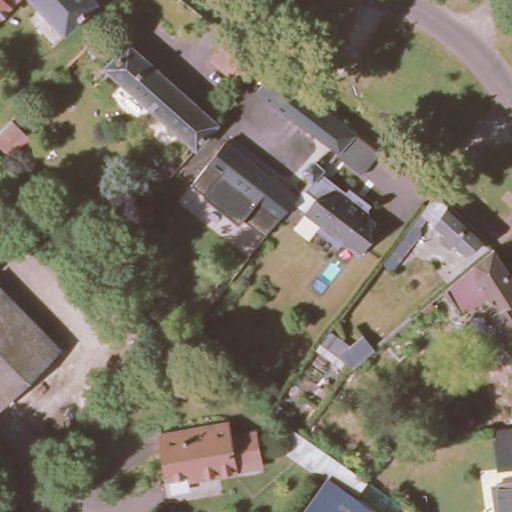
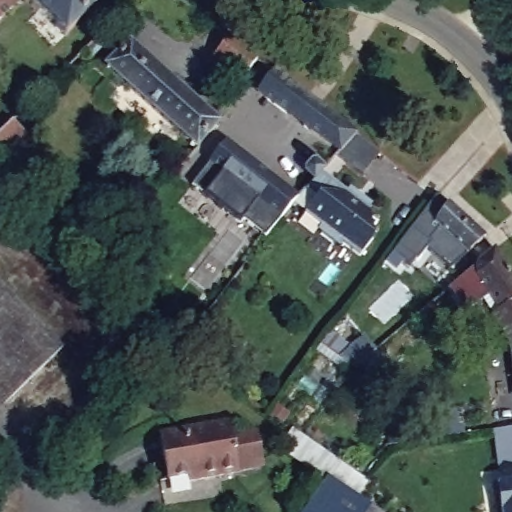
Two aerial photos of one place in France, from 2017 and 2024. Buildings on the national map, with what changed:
unchanged [(0,0),(17,0),(9,7),(0,15),(0,0)]
unchanged [(55,44),(35,24),(45,15),(31,0),(92,0),(96,4),(55,44)]
unchanged [(205,50),(224,25),(252,47),(233,70),(205,50)]
unchanged [(123,44),(211,121),(190,145),(100,66),(123,44)]
unchanged [(360,164),(334,145),(336,141),(250,80),(268,59),(352,124),(376,142),(360,164)]
unchanged [(221,165),(220,167),(201,152),(220,131),(296,189),(292,195),(280,210),(221,165)]
unchanged [(350,182),(371,199),(368,203),(369,213),(375,218),(370,224),(371,234),(359,250),(341,236),(338,240),(316,224),(319,220),(303,207),(305,205),(292,195),(296,189),(315,172),(308,164),(316,156),(323,164),(320,167),(346,186),(350,182)]
unchanged [(455,255),(453,258),(444,250),(450,244),(430,227),(418,240),(420,241),(391,276),(383,270),(440,198),(490,242),(469,261),(466,259),(462,263),(455,255)]
unchanged [(511,345),(494,317),(498,315),(474,278),(474,270),(495,253),(512,280),(512,345),(511,345)]
unchanged [(0,408),(0,288),(60,350),(0,408)]
unchanged [(365,336),(375,346),(363,355),(351,365),(318,342),(328,329),(352,347),(365,336)]
unchanged [(168,340),(180,349),(170,361),(158,353),(168,340)]
unchanged [(511,360),(512,359),(512,366),(511,360)]
unchanged [(161,430),(228,424),(235,475),(166,482),(161,430)]
unchanged [(508,470),(502,426),(512,425),(512,469),(508,470)]
unchanged [(323,479),(311,470),(277,445),(290,429),(324,454),(356,477),(403,512),(299,512),(323,479)]
unchanged [(495,483),(512,481),(512,512),(498,512),(495,483)]

